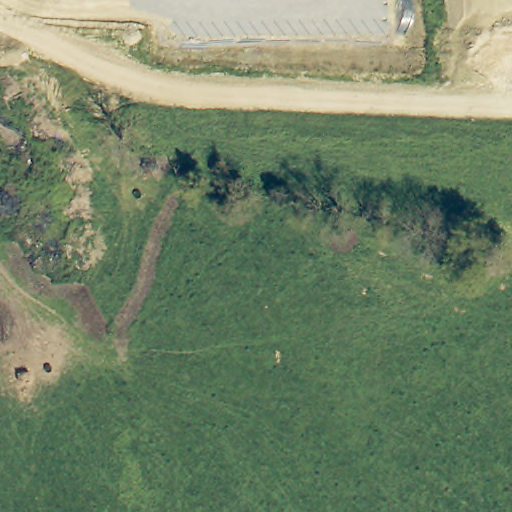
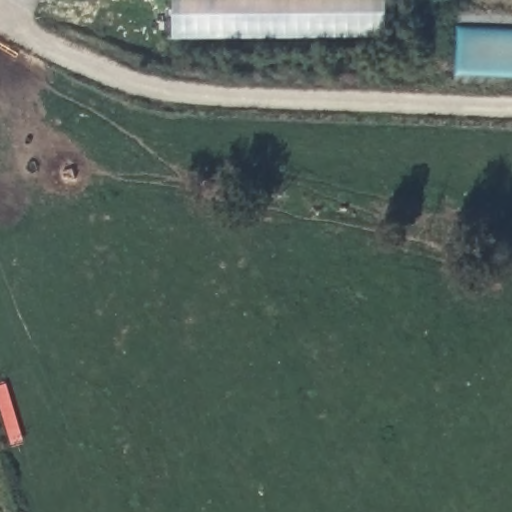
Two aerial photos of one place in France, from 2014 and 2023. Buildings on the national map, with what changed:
new [(386,36),(172,38),(172,0),(386,0),(386,36)]

